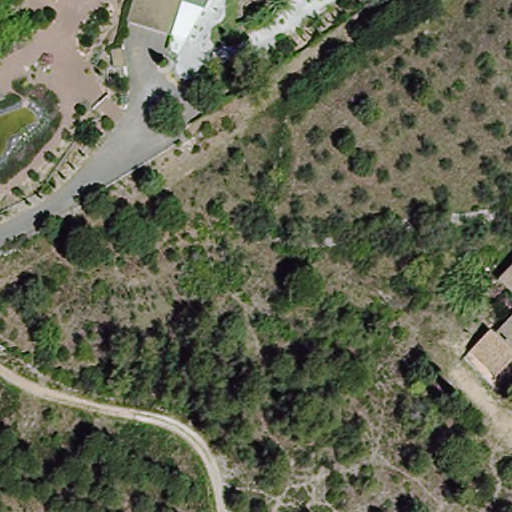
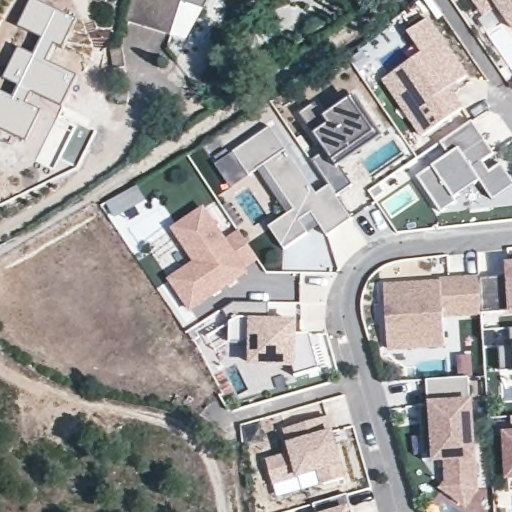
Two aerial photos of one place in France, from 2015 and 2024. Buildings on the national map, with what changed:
new [(32,92),(27,104),(14,97),(19,86),(5,78),(20,47),(35,55),(42,40),(18,27),(31,0),(35,0),(77,20),(64,49),(55,45),(47,60),(78,75),(63,108),(32,92)]
unchanged [(138,0),(188,0),(185,9),(175,40),(130,26),(138,0)]
unchanged [(203,12),(185,9),(188,0),(208,0),(203,12)]
new [(499,10),(487,20),(474,0),(512,0),(512,29),(499,10)]
new [(470,72),(448,87),(462,107),(424,131),(386,76),(423,51),(409,30),(430,16),(470,72)]
new [(42,112),(26,144),(0,131),(0,89),(12,96),(42,112)]
new [(339,195),(328,181),(327,182),(313,161),(328,153),(316,135),(300,114),(316,102),(325,116),(355,96),(382,136),(340,165),(353,185),(339,195)]
new [(512,179),(512,182),(494,197),(480,179),(452,196),(454,200),(442,207),(419,172),(452,149),(443,136),(472,116),(512,179)]
new [(328,181),(342,199),(352,217),(327,235),(319,224),(287,246),(272,221),(285,211),(257,169),(232,183),(217,160),(215,155),(225,149),(227,153),(270,125),(315,191),(328,181)]
new [(140,186),(147,200),(117,216),(109,202),(140,186)]
new [(225,235),(237,230),(260,257),(246,265),(247,272),(190,311),(167,278),(193,260),(172,225),(203,204),(225,235)]
demolished [(501,274),(512,262),(512,288),(501,274)]
new [(508,274),(508,265),(512,265),(512,308),(480,310),(478,275),(508,274)]
new [(478,275),(480,310),(442,314),(444,344),(390,346),(385,280),(440,277),(440,273),(478,272),(478,275)]
new [(270,320),(294,318),(295,331),(310,332),(321,368),(297,374),(293,362),(252,359),(253,340),(231,340),(230,318),(223,306),(237,299),(269,298),(270,320)]
demolished [(495,377),(468,349),(495,320),(502,328),(512,319),(512,361),(495,377)]
new [(501,370),(500,345),(508,343),(507,326),(512,326),(512,370),(501,370)]
new [(480,489),(468,503),(440,486),(445,478),(443,460),(434,461),(429,398),(428,371),(470,366),(480,489)]
new [(346,474),(323,480),(320,467),(299,474),(298,470),(274,481),(268,456),(292,445),(291,440),(286,424),(330,411),(346,474)]
new [(507,480),(503,428),(512,428),(512,479),(507,480)]
new [(353,512),(317,512),(312,500),(348,490),(351,504),(353,512)]

